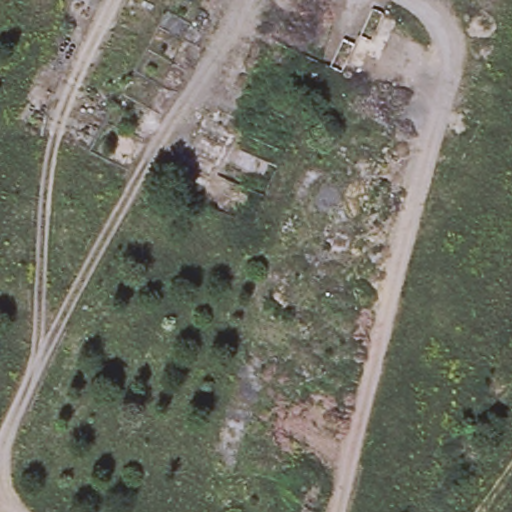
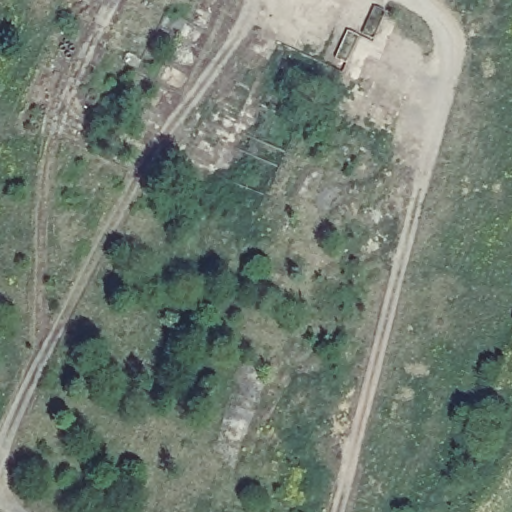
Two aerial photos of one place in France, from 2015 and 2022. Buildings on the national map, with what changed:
[]

